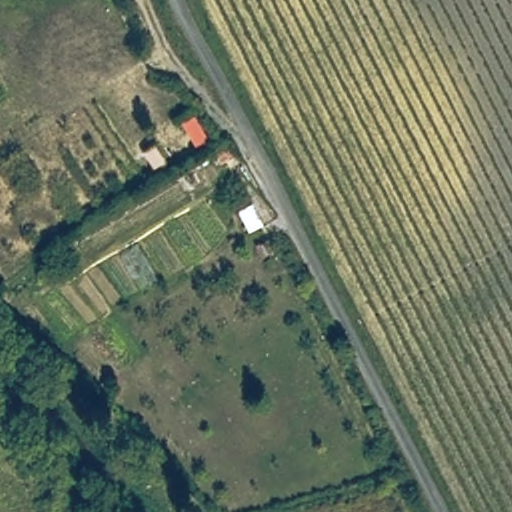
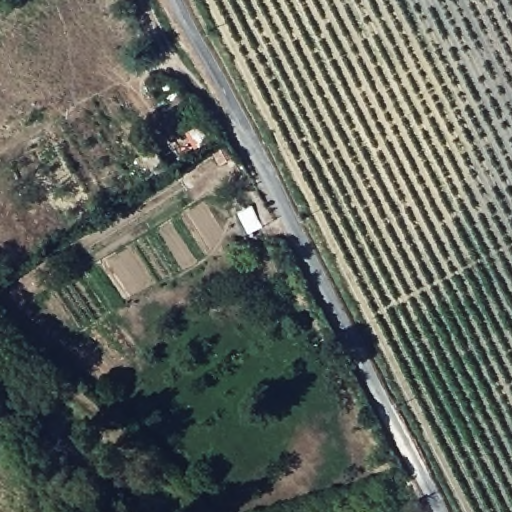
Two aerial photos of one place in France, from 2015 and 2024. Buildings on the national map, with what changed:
[]

